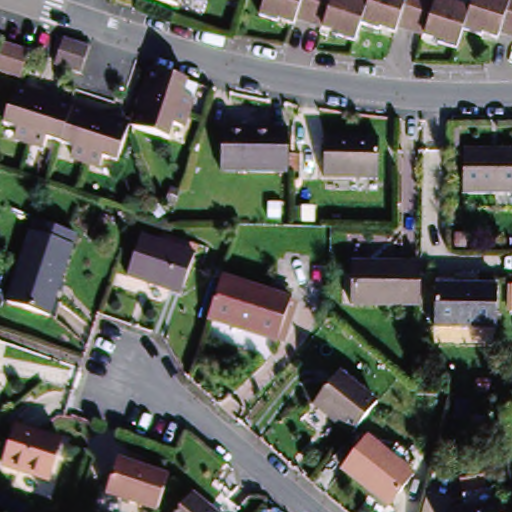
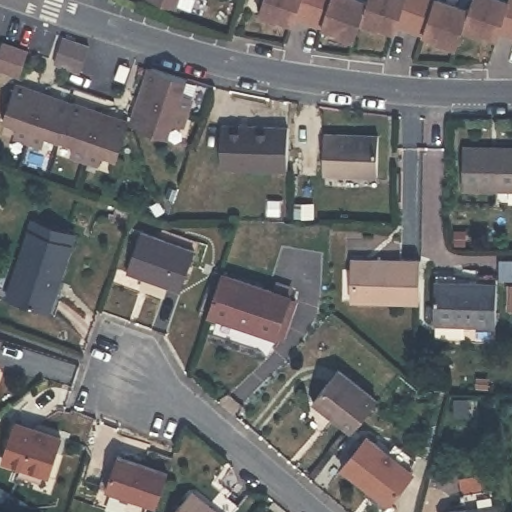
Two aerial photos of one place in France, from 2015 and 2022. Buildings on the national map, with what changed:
unchanged [(145,0),(178,0),(174,10),(145,0)]
unchanged [(284,5),(281,14),(263,7),(265,0),(318,0),(313,14),(284,5)]
unchanged [(358,32),(339,27),(342,19),(328,13),(326,19),(313,14),(318,0),(371,0),(365,14),(358,32)]
unchanged [(383,21),(365,14),(371,0),(419,0),(413,22),(385,14),(383,21)]
unchanged [(457,0),(469,4),(464,22),(459,39),(440,33),(443,25),(428,20),(427,26),(413,22),(419,0),(457,0)]
unchanged [(470,0),(512,0),(512,27),(502,24),(484,19),(481,27),(464,22),(469,4),(470,0)]
unchanged [(79,70),(50,62),(59,35),(86,45),(79,70)]
unchanged [(1,37),(30,47),(20,73),(0,67),(0,40),(1,37)]
unchanged [(186,99),(194,102),(183,131),(174,128),(170,144),(133,131),(152,71),(178,81),(190,84),(186,99)]
unchanged [(11,89),(129,127),(118,164),(102,157),(97,173),(69,162),(73,150),(45,141),(41,154),(11,144),(15,132),(0,128),(0,126),(11,89)]
unchanged [(288,177),(220,177),(221,131),(289,132),(288,177)]
unchanged [(322,137),(379,137),(378,177),(321,177),(322,137)]
unchanged [(462,152),(512,152),(512,195),(462,195),(462,152)]
unchanged [(8,307),(32,234),(35,222),(79,237),(75,249),(50,321),(8,307)]
unchanged [(144,235),(196,252),(183,296),(129,280),(144,235)]
unchanged [(421,307),(350,305),(350,263),(421,264),(421,307)]
unchanged [(298,300),(285,341),(215,319),(228,278),(298,300)]
unchanged [(435,287),(497,287),(496,333),(434,332),(435,287)]
unchanged [(308,404),(334,373),(374,406),(348,437),(308,404)]
unchanged [(17,427),(62,441),(49,483),(4,468),(17,427)]
unchanged [(368,442),(413,480),(386,512),(342,473),(368,442)]
unchanged [(105,493),(116,458),(169,475),(157,510),(105,493)]
unchanged [(191,497),(208,512),(178,512),(191,497)]
unchanged [(501,508),(501,512),(474,512),(501,508)]

